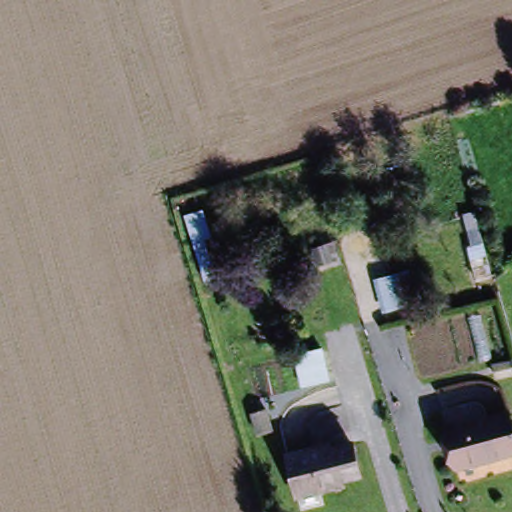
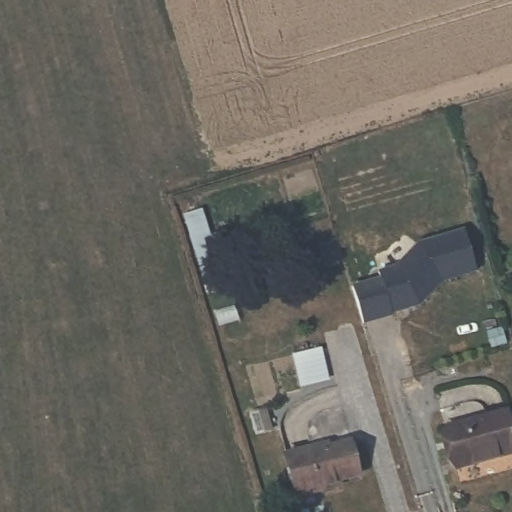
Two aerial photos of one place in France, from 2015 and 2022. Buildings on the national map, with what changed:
unchanged [(210,237),(204,240),(211,262),(217,260),(222,277),(205,282),(185,215),(202,210),(210,237)]
new [(390,279),(387,273),(405,267),(426,244),(473,230),(484,270),(450,280),(428,305),(401,313),(402,315),(372,324),(362,288),(390,279)]
new [(322,350),(329,380),(302,386),(295,356),(322,350)]
unchanged [(497,377),(493,364),(512,360),(512,374),(497,377)]
unchanged [(512,453),(512,457),(452,473),(440,433),(435,415),(467,405),(479,413),(482,422),(502,417),(512,453)]
unchanged [(272,428),(257,432),(251,413),(266,409),(272,428)]
unchanged [(292,486),(282,451),(315,441),(317,445),(345,437),(355,470),(335,475),(336,480),(316,485),(293,492),(292,486)]

